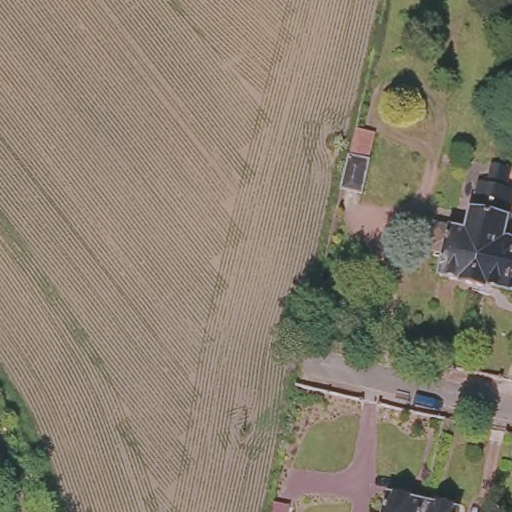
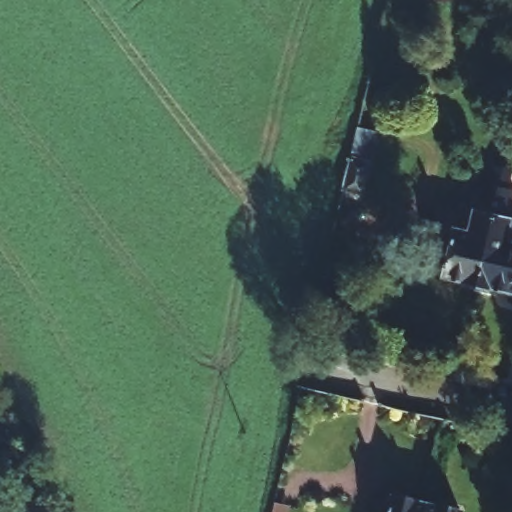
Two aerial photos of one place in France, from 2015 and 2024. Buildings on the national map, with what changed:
unchanged [(347,161),(365,165),(357,195),(340,192),(347,161)]
unchanged [(470,281),(470,278),(437,271),(442,248),(426,244),(431,220),(460,227),(472,181),(490,185),(494,165),(506,168),(480,284),(470,281)]
unchanged [(506,168),(512,170),(512,181),(510,190),(512,190),(512,233),(511,238),(512,238),(512,288),(490,282),(489,286),(480,284),(506,168)]
unchanged [(326,413),(292,406),(297,388),(330,395),(326,413)]
unchanged [(386,493),(420,500),(418,512),(382,512),(386,493)]
unchanged [(455,507),(454,512),(418,512),(420,500),(455,507)]
unchanged [(367,511),(370,512),(367,512),(367,511)]

